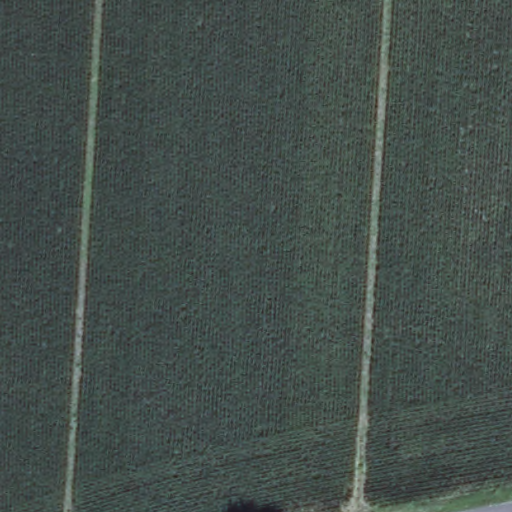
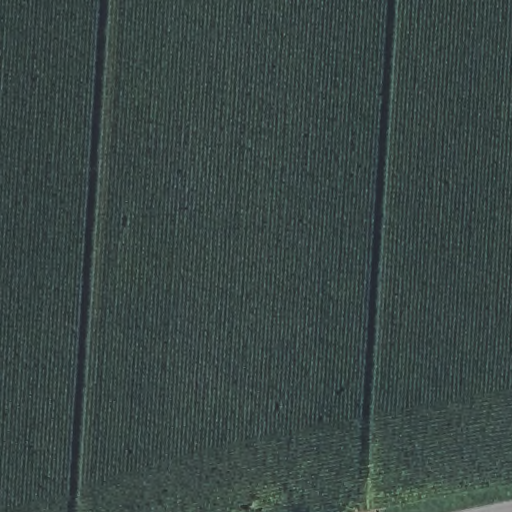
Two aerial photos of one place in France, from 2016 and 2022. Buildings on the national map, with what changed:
unchanged [(63,512),(43,512),(43,510),(64,510),(63,512)]

